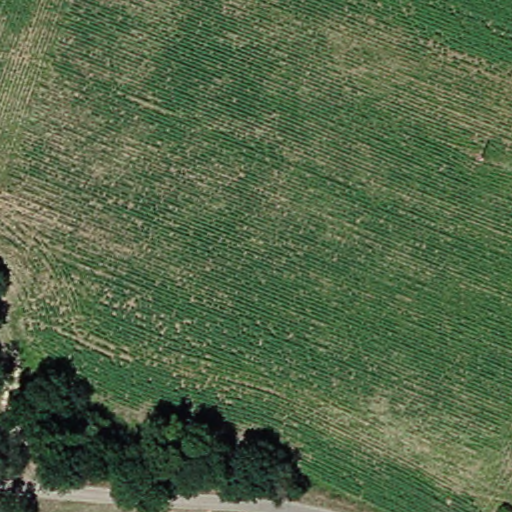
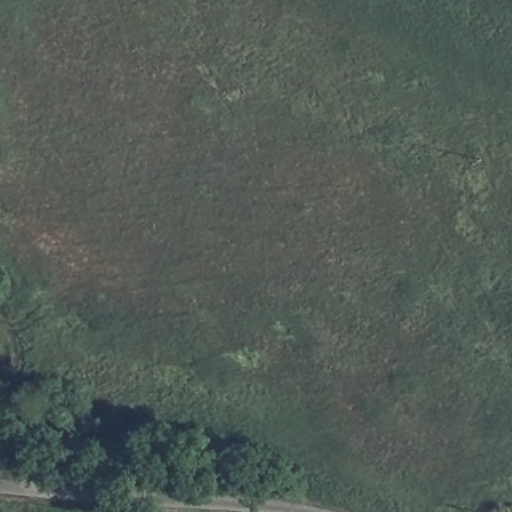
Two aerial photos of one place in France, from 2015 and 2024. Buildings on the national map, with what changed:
[]

